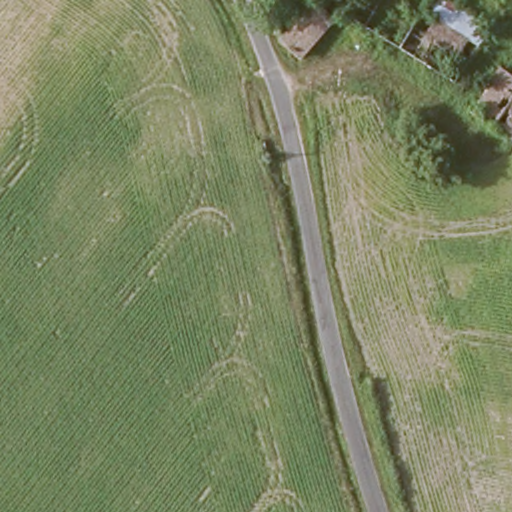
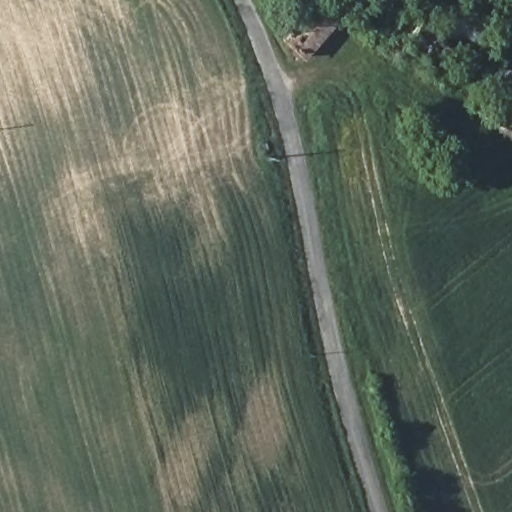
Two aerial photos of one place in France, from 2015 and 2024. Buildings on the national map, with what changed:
unchanged [(457,85),(403,48),(434,0),(451,0),(496,29),(457,85)]
unchanged [(282,44),(318,6),(322,9),(325,5),(337,16),(298,59),(285,50),(282,44)]
unchanged [(477,109),(504,67),(512,72),(512,132),(477,109)]

